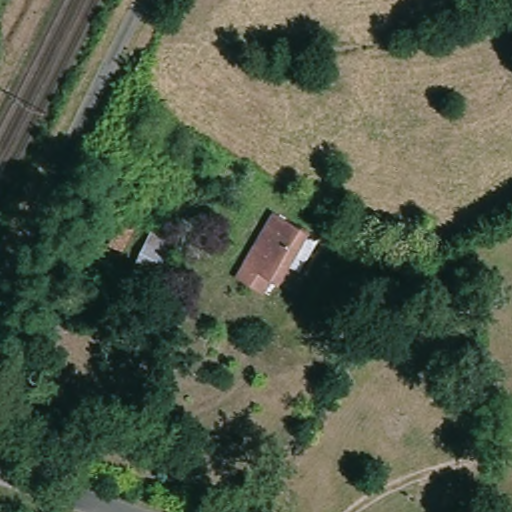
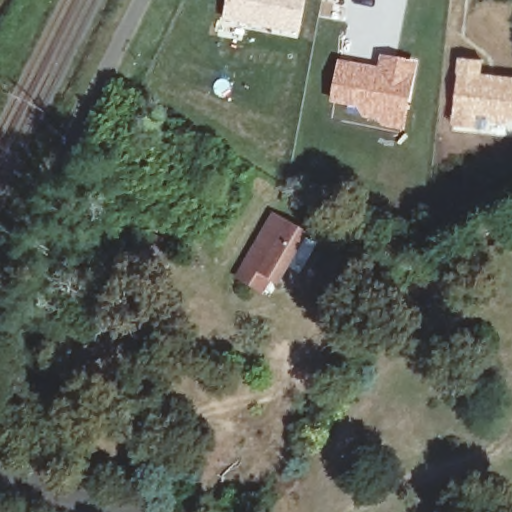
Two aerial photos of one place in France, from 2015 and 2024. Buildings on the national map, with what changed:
new [(225,0),(306,0),(298,38),(220,21),(225,0)]
new [(337,58),(377,66),(379,54),(417,60),(404,131),(356,118),(357,110),(329,104),(337,58)]
new [(457,56),(483,59),(482,72),(512,76),(512,135),(450,126),(457,56)]
unchanged [(215,306),(221,297),(270,212),(299,228),(273,273),(262,291),(256,287),(238,321),(228,314),(215,306)]
unchanged [(317,240),(289,283),(273,273),(299,228),(317,240)]
unchanged [(156,280),(128,268),(146,231),(177,245),(156,280)]

